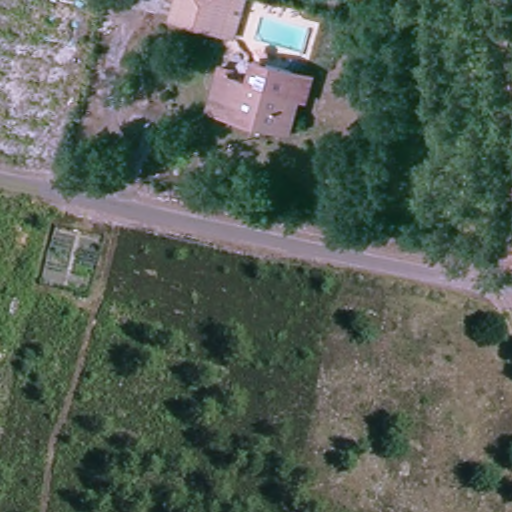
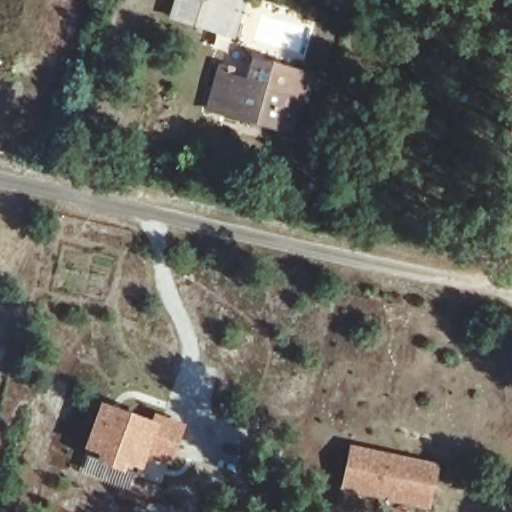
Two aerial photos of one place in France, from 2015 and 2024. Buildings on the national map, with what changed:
unchanged [(170,0),(223,0),(236,2),(233,14),(193,5),(188,37),(163,33),(170,1),(170,0)]
unchanged [(193,5),(233,14),(229,43),(188,37),(193,5)]
unchanged [(304,98),(291,147),(206,130),(214,83),(253,89),(260,65),(322,78),(319,101),(304,98)]
new [(159,424),(162,415),(186,422),(173,464),(148,454),(141,469),(128,464),(125,472),(96,464),(100,454),(85,450),(101,401),(159,424)]
new [(441,464),(431,509),(341,490),(350,443),(441,464)]

